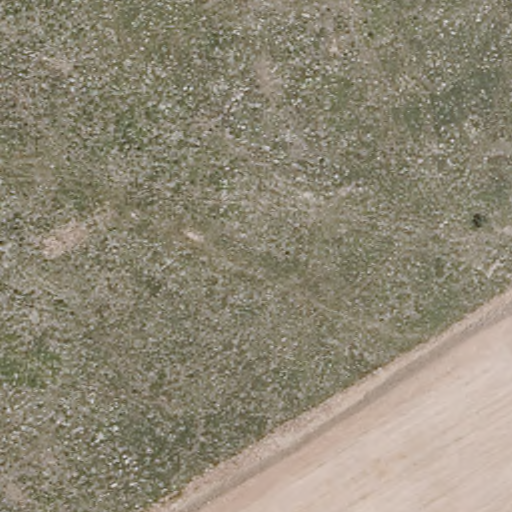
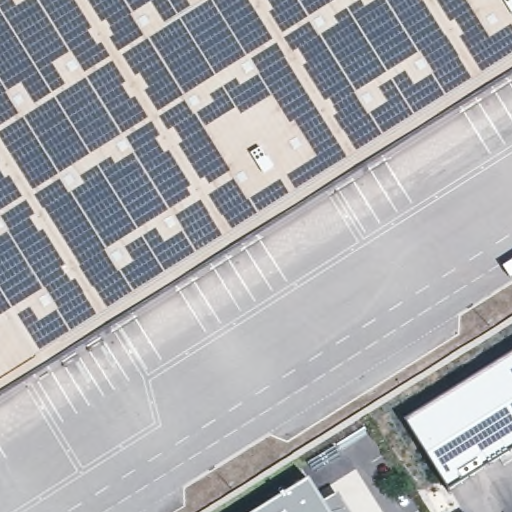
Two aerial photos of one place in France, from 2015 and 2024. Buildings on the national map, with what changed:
new [(0,402),(0,0),(512,0),(512,78),(0,402)]
new [(409,423),(512,358),(512,452),(451,490),(409,423)]
unchanged [(331,512),(258,512),(311,479),(331,512)]
new [(464,512),(463,512),(464,511),(464,512)]

